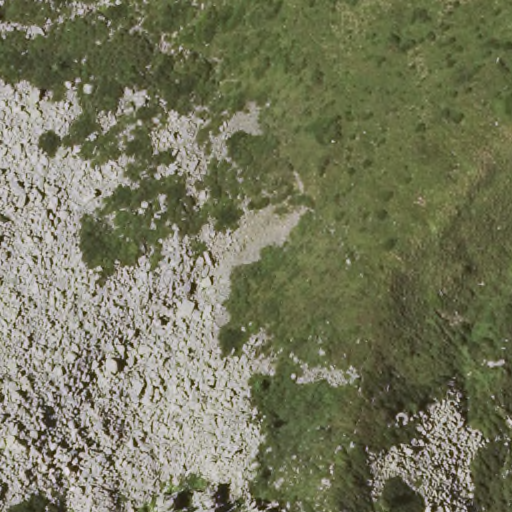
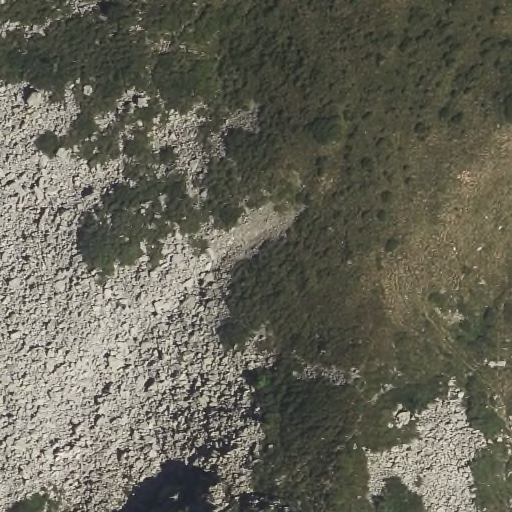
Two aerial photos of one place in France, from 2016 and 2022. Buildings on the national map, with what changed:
[]

